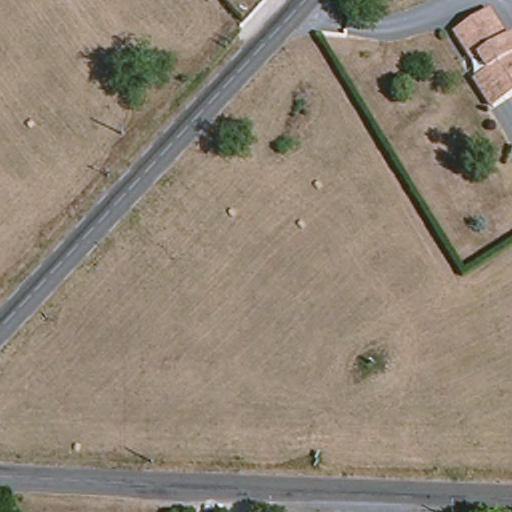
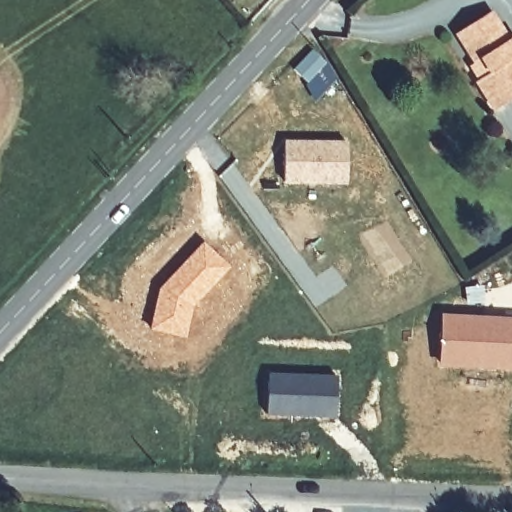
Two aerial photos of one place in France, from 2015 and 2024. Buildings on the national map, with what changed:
unchanged [(472,87),(459,64),(466,59),(450,34),(484,12),(501,38),(510,32),(512,36),(512,103),(492,115),(472,87)]
new [(312,48),(336,76),(315,97),(292,67),(312,48)]
new [(284,138),(347,139),(346,183),(282,182),(284,138)]
new [(159,286),(203,240),(229,266),(194,304),(185,336),(149,328),(159,286)]
new [(512,316),(512,370),(437,365),(440,312),(512,316)]
new [(267,370),(337,373),(335,416),(265,413),(267,370)]

